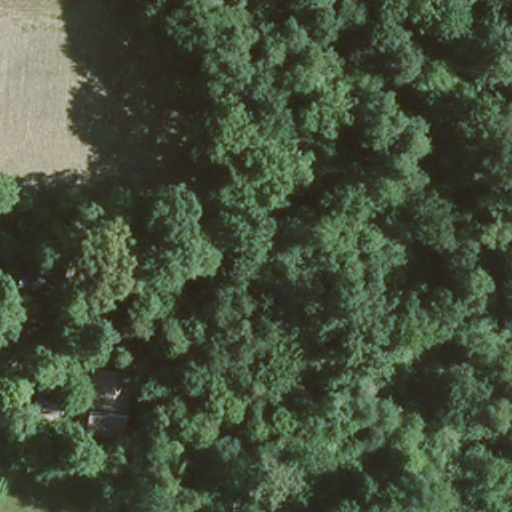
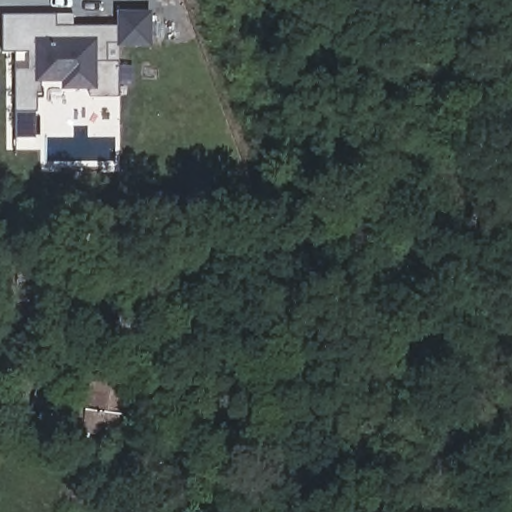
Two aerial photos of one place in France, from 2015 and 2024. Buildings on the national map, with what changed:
new [(90,99),(90,92),(61,91),(61,82),(40,82),(41,95),(36,95),(37,112),(15,112),(14,52),(3,52),(2,16),(75,17),(75,26),(117,26),(117,12),(151,12),(152,49),(108,48),(108,63),(118,63),(120,99),(90,99)]
unchanged [(61,291),(44,289),(28,287),(31,258),(48,261),(64,262),(61,291)]
unchanged [(77,406),(87,407),(92,366),(127,371),(120,431),(84,426),(85,425),(75,424),(77,406)]
unchanged [(56,413),(32,407),(39,378),(54,382),(60,383),(63,384),(56,413)]

